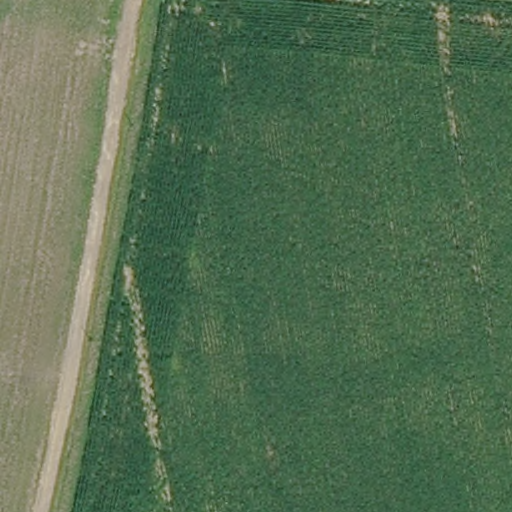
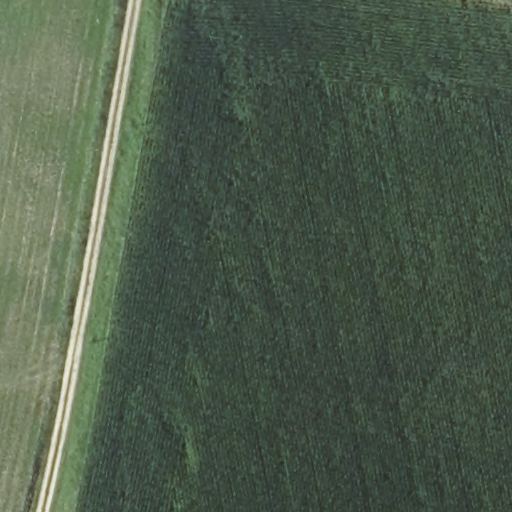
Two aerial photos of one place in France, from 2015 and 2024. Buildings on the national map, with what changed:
[]

